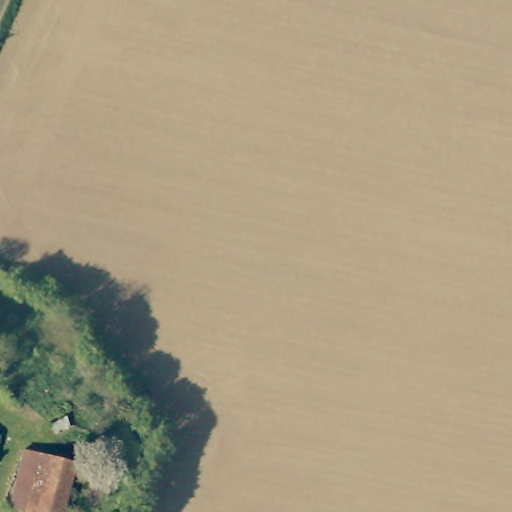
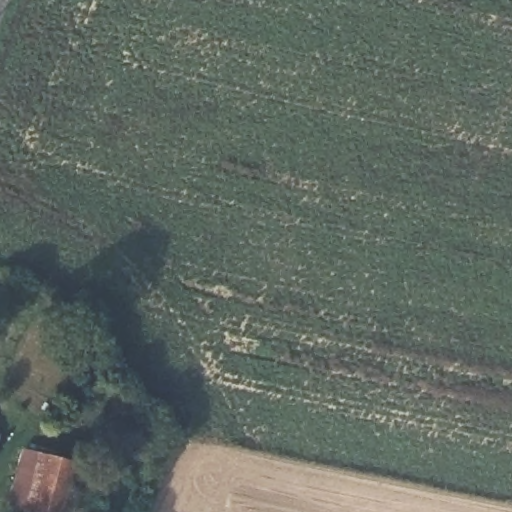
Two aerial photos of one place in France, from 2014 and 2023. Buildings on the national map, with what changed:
unchanged [(4,503),(21,453),(41,460),(25,511),(4,503)]
unchanged [(71,470),(55,512),(26,512),(25,511),(41,460),(71,470)]

